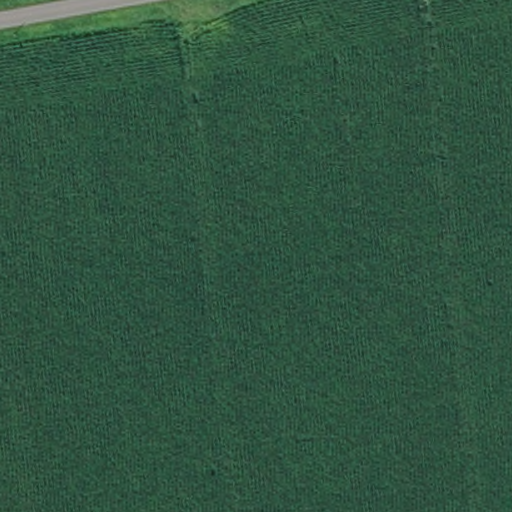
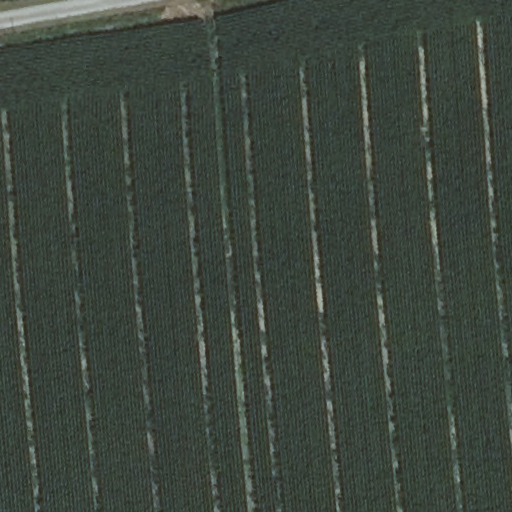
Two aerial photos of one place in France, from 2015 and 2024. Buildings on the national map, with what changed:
[]

